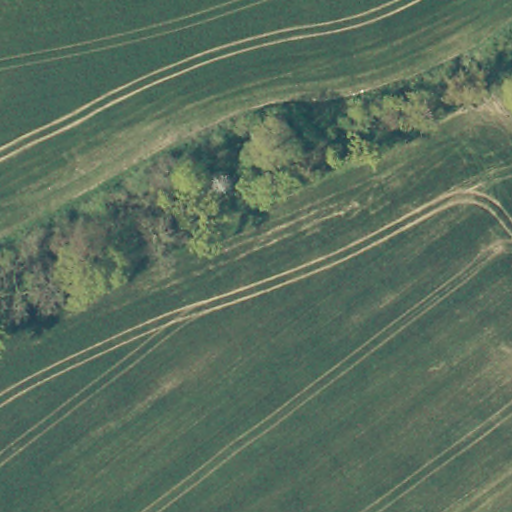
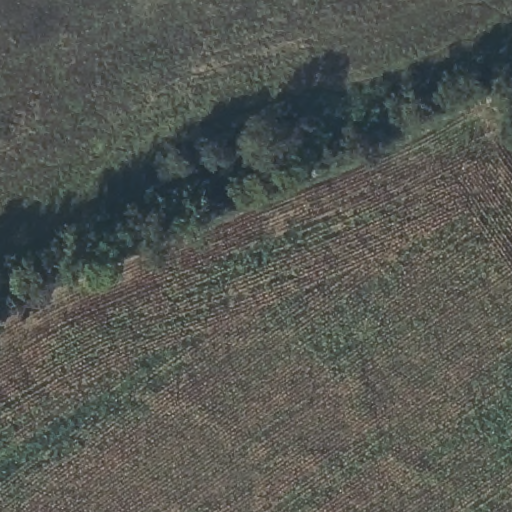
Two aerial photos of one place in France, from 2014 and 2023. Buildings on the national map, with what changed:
unchanged [(250,128),(276,118),(286,142),(260,152),(250,128)]

